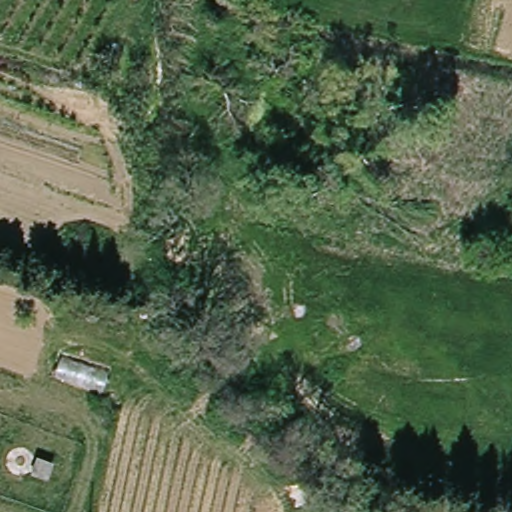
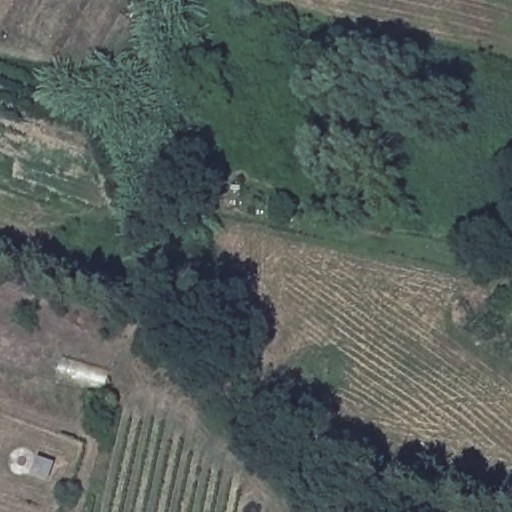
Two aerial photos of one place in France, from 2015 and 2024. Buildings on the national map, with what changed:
unchanged [(110,371),(104,391),(56,378),(61,357),(110,371)]
unchanged [(51,475),(39,472),(42,457),(55,460),(51,475)]

